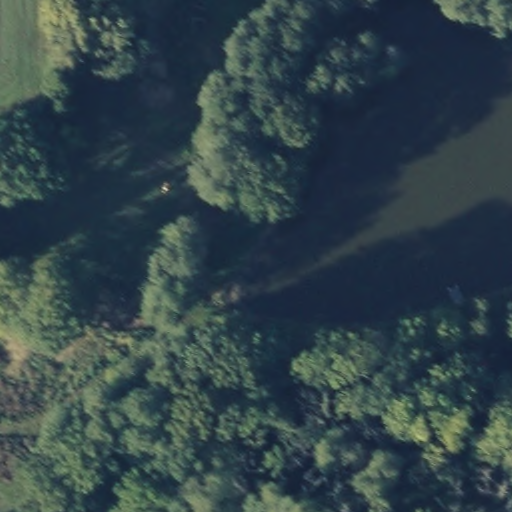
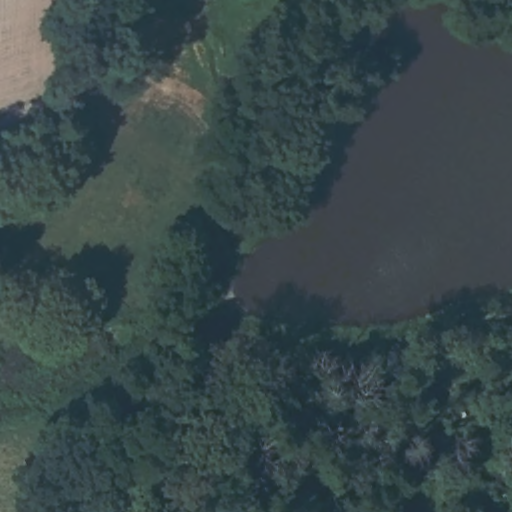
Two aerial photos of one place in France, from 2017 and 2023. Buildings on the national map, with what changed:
unchanged [(80,27),(81,47),(57,45),(63,28),(80,27)]
unchanged [(38,152),(48,166),(16,179),(10,168),(38,152)]

